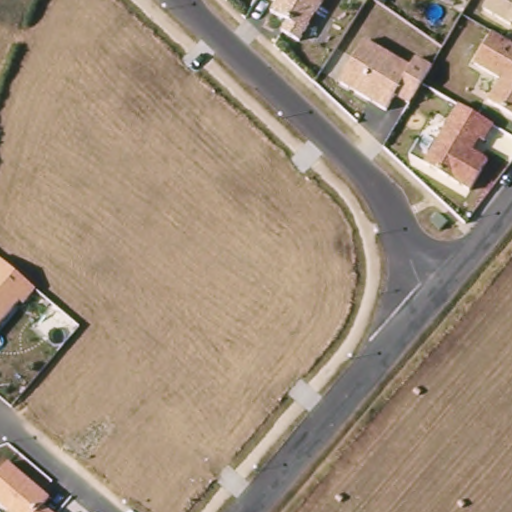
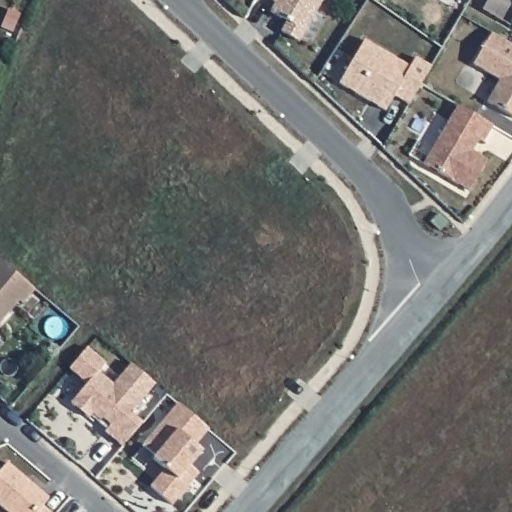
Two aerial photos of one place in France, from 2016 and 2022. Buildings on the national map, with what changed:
unchanged [(287,21),(270,11),(275,3),(270,0),(322,0),(297,40),(281,32),(287,21)]
unchanged [(470,0),(468,4),(461,0),(470,0)]
unchanged [(485,10),(490,0),(512,0),(512,25),(485,10)]
unchanged [(499,83),(471,65),(488,34),(512,49),(512,118),(487,106),(499,83)]
unchanged [(363,41),(407,70),(414,61),(427,71),(403,109),(392,103),(383,115),(337,86),(363,41)]
unchanged [(424,164),(457,106),(492,126),(483,141),(479,139),(472,151),(486,160),(467,190),(424,164)]
unchanged [(24,303),(19,299),(0,322),(0,260),(34,290),(24,303)]
new [(87,349),(106,364),(99,373),(114,386),(131,365),(155,385),(131,414),(142,424),(122,447),(105,433),(111,426),(102,419),(100,422),(92,415),(89,419),(71,404),(87,385),(70,370),(87,349)]
new [(194,479),(172,506),(151,488),(165,470),(153,460),(156,457),(143,446),(178,404),(209,430),(195,446),(202,452),(190,467),(199,474),(194,479)]
unchanged [(0,506),(0,472),(7,464),(49,497),(42,506),(49,512),(7,512),(0,506)]

